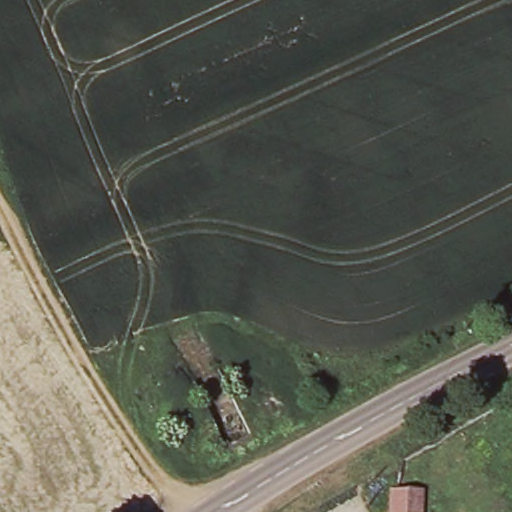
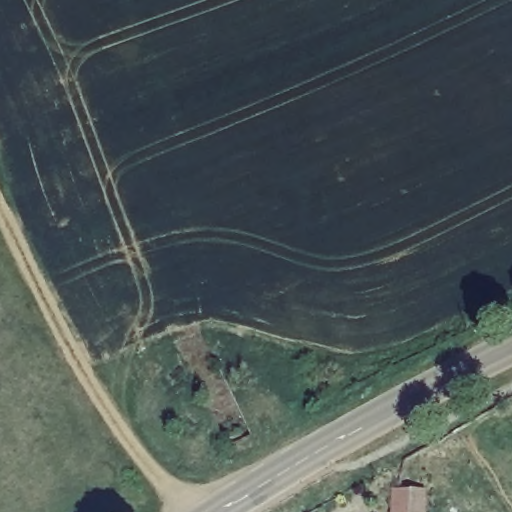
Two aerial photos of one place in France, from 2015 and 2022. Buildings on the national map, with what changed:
unchanged [(194,381),(223,368),(252,431),(222,445),(194,381)]
unchanged [(422,512),(392,512),(397,490),(421,489),(422,512)]

